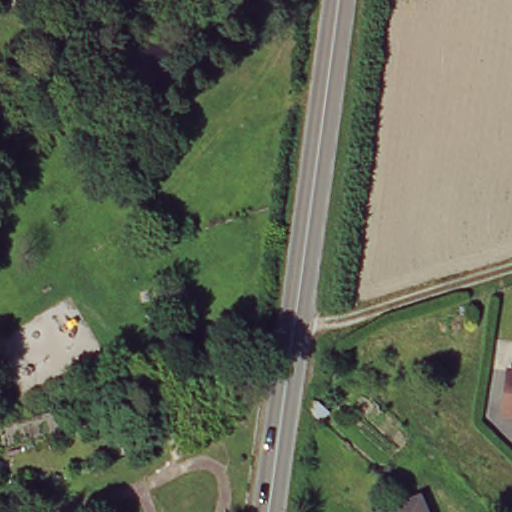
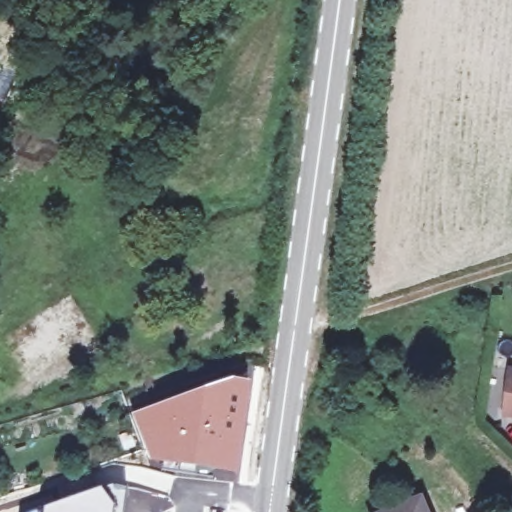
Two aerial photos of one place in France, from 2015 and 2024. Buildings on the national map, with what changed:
new [(229,379),(235,378),(250,381),(239,476),(147,464),(140,443),(129,414),(229,379)]
unchanged [(427,512),(391,512),(422,500),(427,512)]

